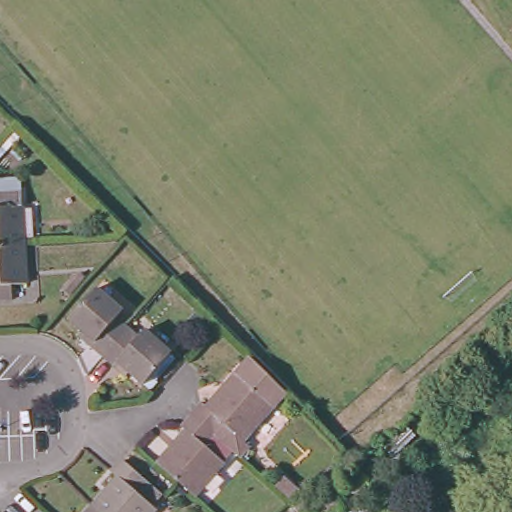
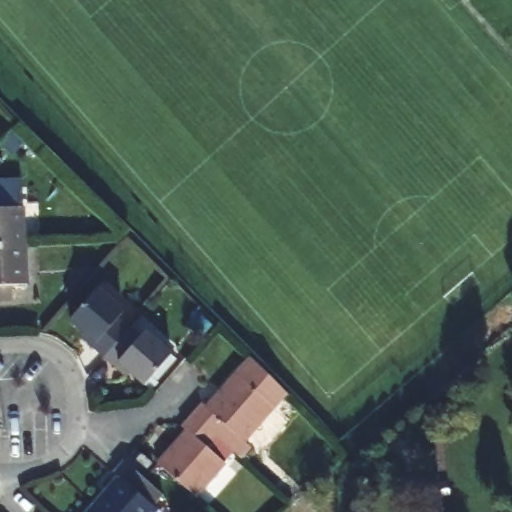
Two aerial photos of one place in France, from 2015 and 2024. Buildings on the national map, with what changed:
unchanged [(8,249),(0,249),(0,209),(15,209),(17,249),(8,249)]
unchanged [(19,291),(3,292),(4,307),(0,307),(0,249),(8,249),(17,249),(19,291)]
unchanged [(72,332),(58,320),(86,288),(113,312),(107,318),(119,328),(92,357),(81,347),(69,337),(72,332)]
unchanged [(103,367),(92,357),(119,328),(129,337),(134,331),(162,354),(134,385),(120,373),(116,378),(103,367)]
unchanged [(253,440),(259,445),(247,457),(241,451),(224,436),(200,414),(210,403),(216,407),(262,356),(296,391),(253,440)]
unchanged [(183,481),(165,465),(194,431),(190,426),(200,414),(224,436),(241,451),(231,462),(233,464),(203,499),(183,481)]
unchanged [(125,478),(120,472),(130,461),(170,496),(161,507),(165,511),(164,512),(106,512),(101,507),(125,478)]
unchanged [(101,507),(106,512),(96,512),(101,507)]

